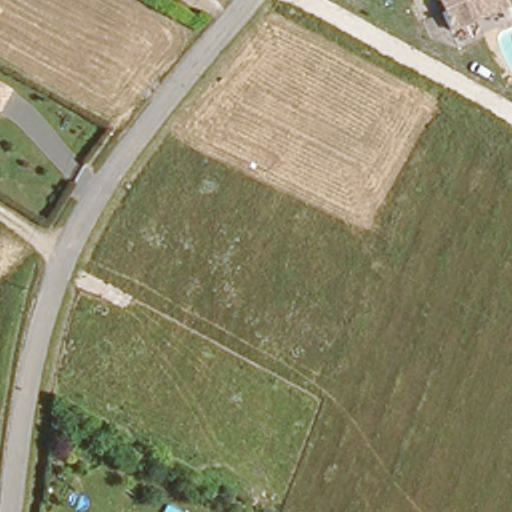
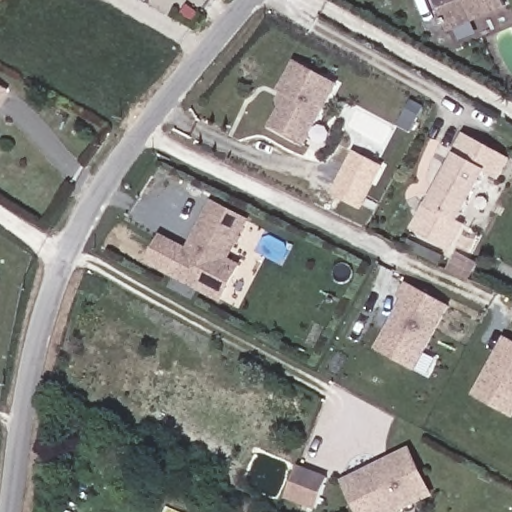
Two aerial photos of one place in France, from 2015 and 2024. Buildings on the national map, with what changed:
unchanged [(433,0),(502,0),(507,10),(448,36),(433,0)]
new [(305,145),(269,126),(280,106),(277,100),(281,94),(277,91),(292,62),(339,87),(305,145)]
new [(501,179),(485,172),(459,222),(467,225),(455,250),(411,229),(464,132),(512,160),(501,179)]
new [(353,150),(384,167),(362,209),(331,193),(353,150)]
new [(228,258),(242,266),(221,302),(147,263),(161,234),(187,248),(212,202),(250,219),(228,258)]
new [(0,287),(0,281),(1,281),(0,287)]
new [(418,371),(378,351),(404,299),(401,297),(408,285),(452,309),(418,371)]
new [(505,337),(512,340),(512,415),(473,396),(505,337)]
new [(403,512),(355,512),(342,483),(411,449),(434,497),(403,512)]
new [(316,510),(286,498),(300,466),(330,479),(316,510)]

